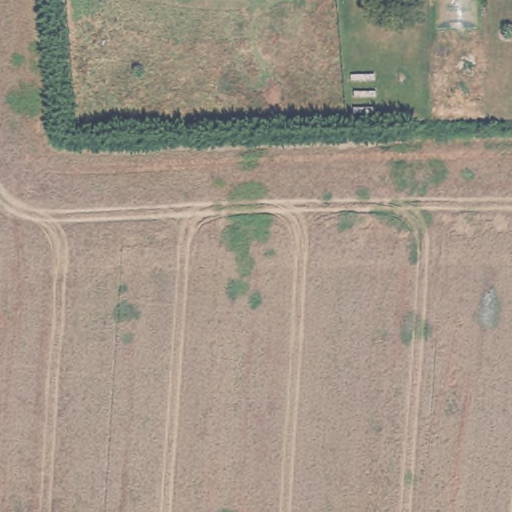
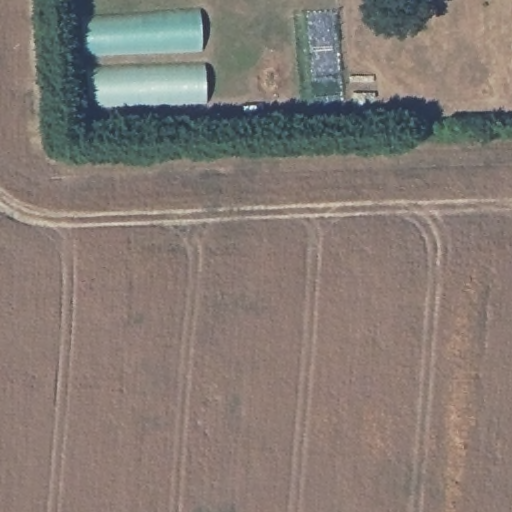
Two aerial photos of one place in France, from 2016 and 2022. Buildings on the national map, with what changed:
new [(208,107),(84,111),(78,13),(201,6),(208,107)]

